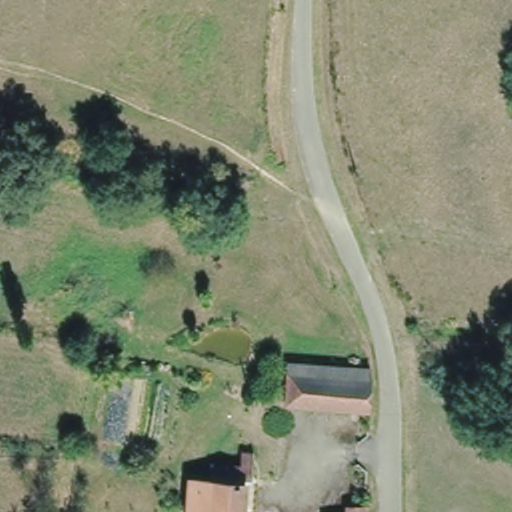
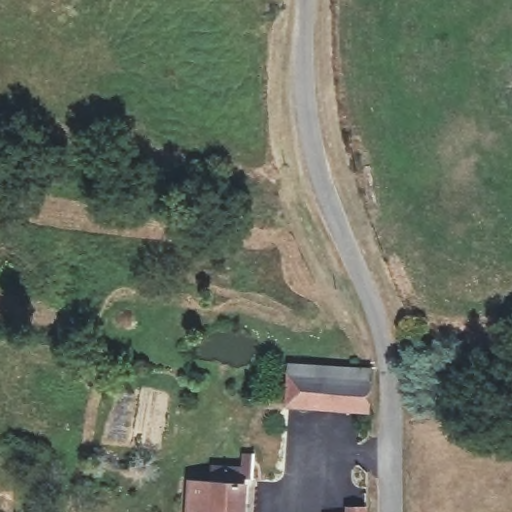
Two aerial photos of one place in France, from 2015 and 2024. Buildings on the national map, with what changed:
unchanged [(284,402),(288,362),(374,366),(372,407),(284,402)]
unchanged [(183,481),(204,481),(205,468),(217,470),(218,464),(232,464),(254,464),(253,482),(239,482),(236,512),(179,512),(183,481)]
unchanged [(354,507),(366,506),(366,512),(354,512),(354,507)]

